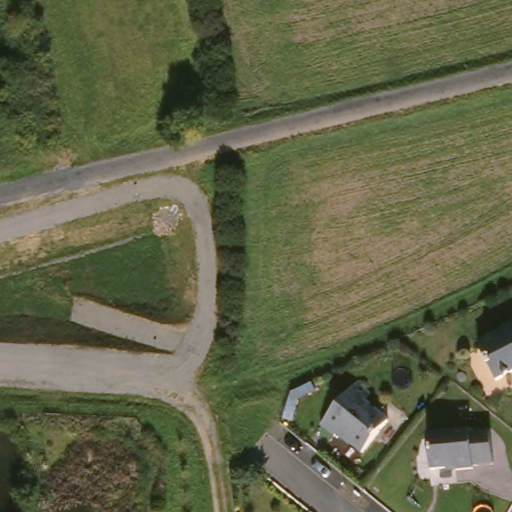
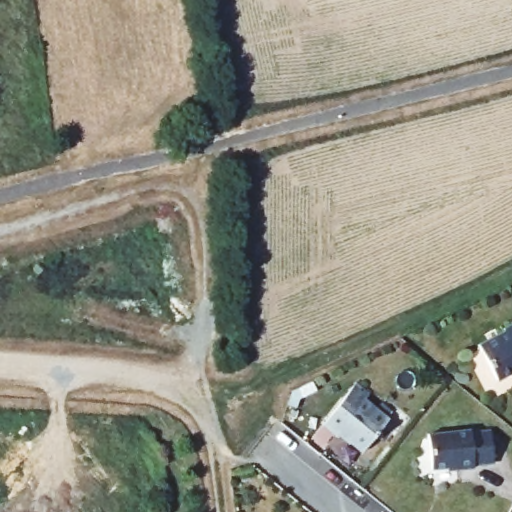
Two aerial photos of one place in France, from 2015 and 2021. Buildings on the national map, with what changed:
unchanged [(496,330),(512,320),(512,372),(511,371),(493,382),(472,348),(497,332),(496,330)]
unchanged [(364,379),(377,390),(371,397),(396,416),(370,449),(345,429),(343,432),(329,421),(364,379)]
unchanged [(423,437),(465,432),(465,435),(485,432),(489,465),(469,467),(469,469),(452,472),(451,469),(427,472),(423,437)]

